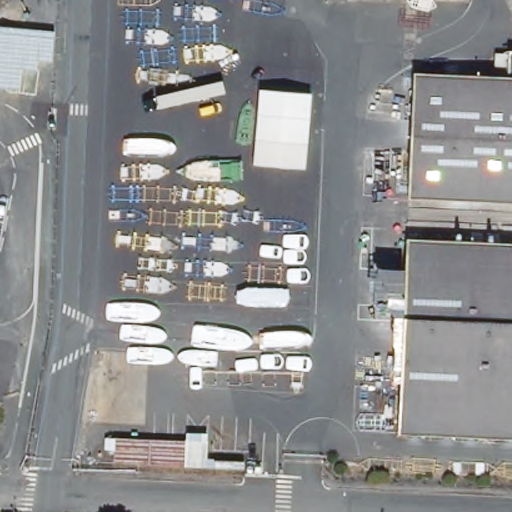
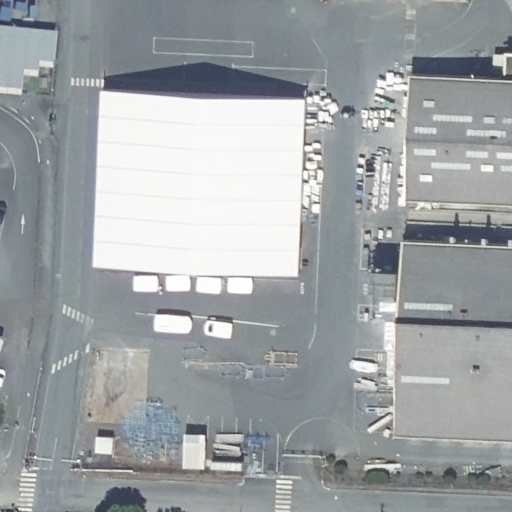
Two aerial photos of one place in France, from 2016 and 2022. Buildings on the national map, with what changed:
unchanged [(56,30),(51,61),(37,59),(36,71),(25,71),(24,91),(0,90),(0,25),(56,30)]
unchanged [(512,52),(512,76),(504,76),(507,52),(512,52)]
unchanged [(418,73),(504,76),(512,76),(512,202),(410,199),(418,73)]
new [(307,97),(302,273),(97,262),(106,90),(307,97)]
unchanged [(413,237),(512,241),(512,440),(402,436),(413,237)]
demolished [(211,441),(209,464),(113,461),(113,437),(211,441)]

